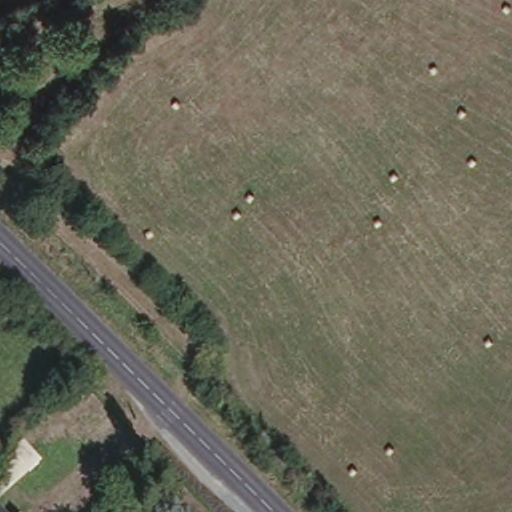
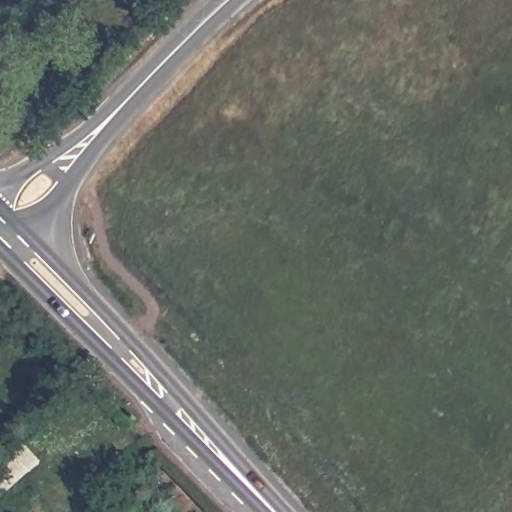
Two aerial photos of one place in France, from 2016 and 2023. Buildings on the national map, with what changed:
unchanged [(0,512),(0,510),(2,512),(0,512)]

